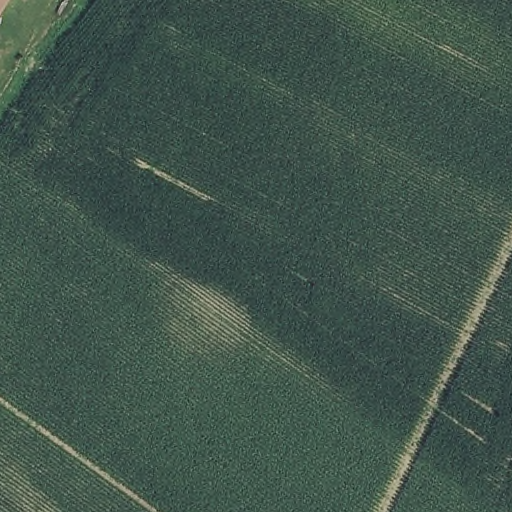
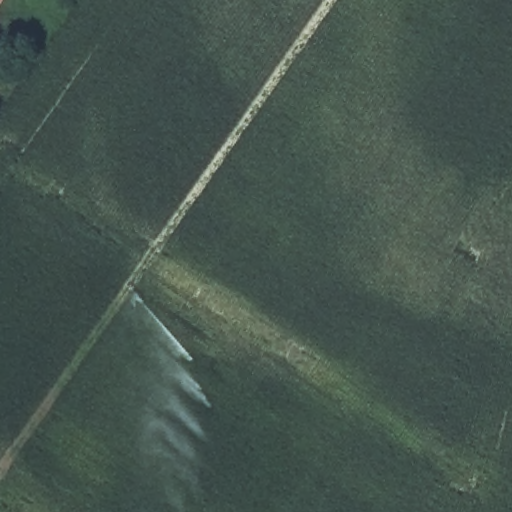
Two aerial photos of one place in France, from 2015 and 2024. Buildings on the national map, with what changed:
unchanged [(0,5),(0,0),(3,0),(0,5)]

